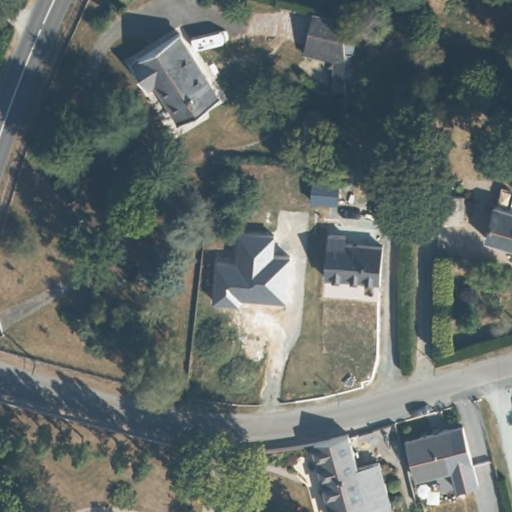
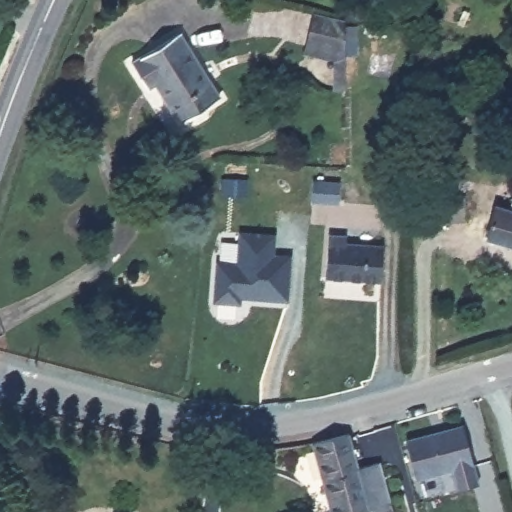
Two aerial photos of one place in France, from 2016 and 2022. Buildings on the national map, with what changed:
unchanged [(344,16),(347,54),(311,45),(317,9),(344,16)]
unchanged [(223,94),(183,119),(157,79),(147,84),(132,60),(180,28),(223,94)]
unchanged [(457,209),(443,209),(438,186),(458,186),(457,209)]
unchanged [(486,238),(492,202),(512,208),(512,246),(486,238)]
unchanged [(288,299),(241,297),(240,303),(212,302),(216,260),(235,261),(237,231),(276,232),(273,255),(291,256),(288,299)]
unchanged [(325,236),(342,237),(342,244),(345,244),(379,246),(378,280),(347,279),(323,278),(325,236)]
unchanged [(444,429),(449,442),(462,439),(467,456),(455,459),(458,468),(419,478),(409,439),(444,429)]
unchanged [(346,432),(352,467),(374,463),(384,504),(385,512),(327,512),(313,440),(346,432)]

